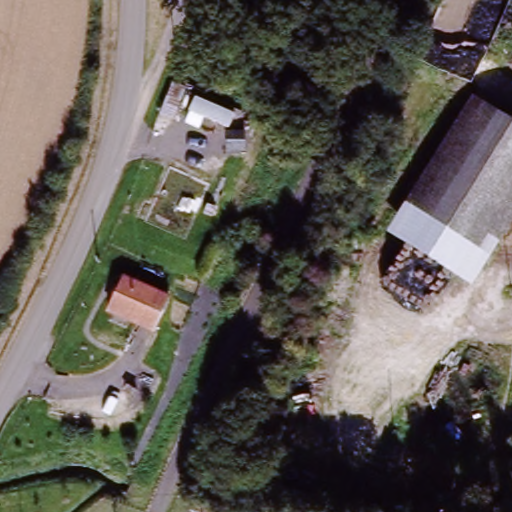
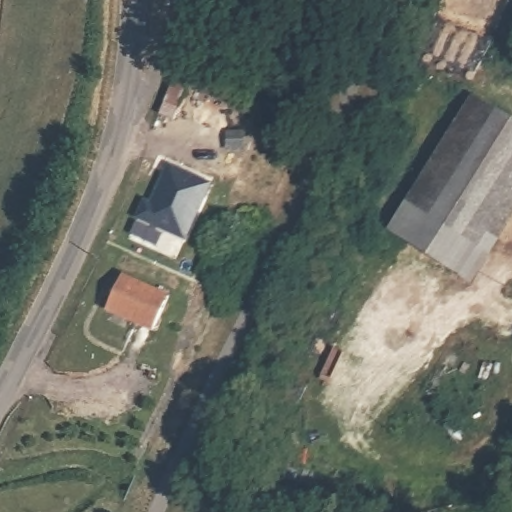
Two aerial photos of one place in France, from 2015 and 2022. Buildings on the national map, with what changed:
unchanged [(174,84),(194,94),(174,133),(158,119),(174,84)]
unchanged [(471,98),(512,120),(512,215),(468,282),(386,234),(471,98)]
new [(215,180),(188,245),(140,226),(166,161),(215,180)]
new [(140,226),(132,222),(140,203),(148,206),(140,226)]
unchanged [(163,295),(147,334),(108,317),(123,279),(163,295)]

